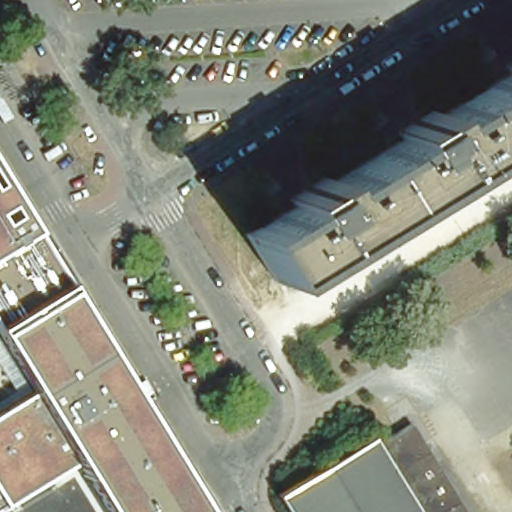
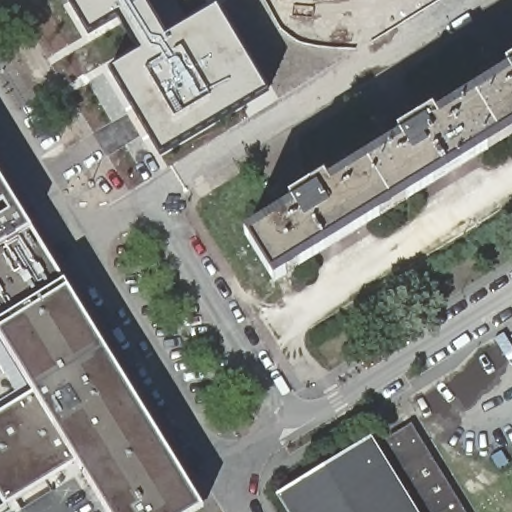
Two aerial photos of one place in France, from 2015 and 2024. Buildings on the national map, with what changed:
new [(146,12),(161,41),(216,8),(265,92),(182,140),(162,152),(135,106),(114,70),(142,51),(126,25),(120,14),(90,32),(71,0),(142,0),(141,1),(146,12)]
unchanged [(492,84),(504,77),(500,71),(512,64),(512,137),(496,146),(467,99),(492,84)]
unchanged [(385,150),(396,143),(392,138),(414,125),(427,117),(431,121),(467,99),(496,146),(470,162),(415,196),(388,212),(360,166),(385,150)]
unchanged [(388,212),(361,229),(307,262),(279,280),(270,285),(268,287),(240,239),(276,217),(287,210),(285,205),(306,191),(320,182),(323,187),(360,166),(388,212)]
unchanged [(0,247),(0,175),(32,227),(0,247)]
unchanged [(65,278),(0,319),(0,247),(32,227),(65,278)]
unchanged [(205,507),(197,512),(109,512),(77,462),(32,392),(0,340),(0,319),(65,278),(205,507)]
unchanged [(0,411),(32,392),(77,462),(0,509),(0,411)]
unchanged [(278,495),(369,437),(375,446),(411,424),(465,512),(289,512),(278,495)]

